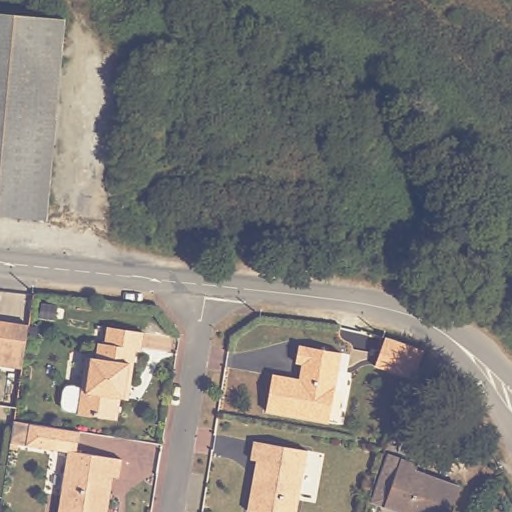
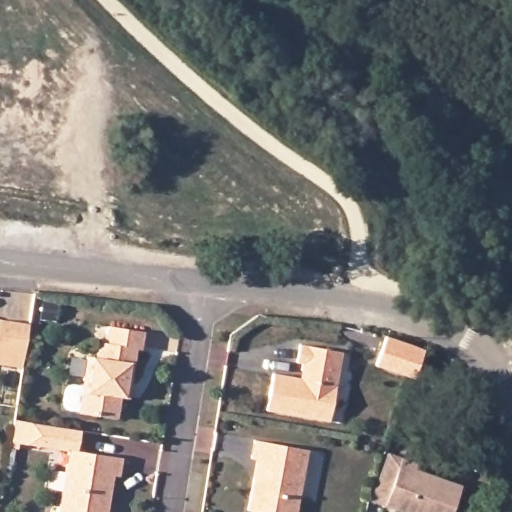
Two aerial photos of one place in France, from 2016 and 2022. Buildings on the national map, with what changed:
demolished [(63,16),(46,214),(0,210),(0,10),(63,16)]
unchanged [(0,353),(0,319),(2,310),(33,315),(28,346),(26,358),(0,353)]
unchanged [(73,402),(72,398),(73,386),(76,382),(81,380),(92,382),(96,351),(106,353),(108,338),(114,338),(117,322),(153,327),(150,345),(145,345),(140,379),(138,394),(133,394),(130,393),(127,414),(88,408),(88,407),(77,405),(73,402)]
unchanged [(423,350),(420,358),(413,379),(375,366),(384,338),(423,350)]
unchanged [(301,358),(304,340),(346,347),(333,417),(271,406),(277,369),(304,374),(306,366),(307,359),(301,358)]
unchanged [(110,512),(62,512),(72,446),(31,440),(15,437),(18,416),(34,418),(84,426),(81,447),(126,454),(123,472),(117,471),(114,489),(110,512)]
unchanged [(259,436),(312,445),(300,512),(288,512),(252,506),(258,473),(261,455),(255,454),(259,436)]
unchanged [(450,512),(403,512),(370,500),(386,454),(417,465),(415,471),(460,487),(450,512)]

